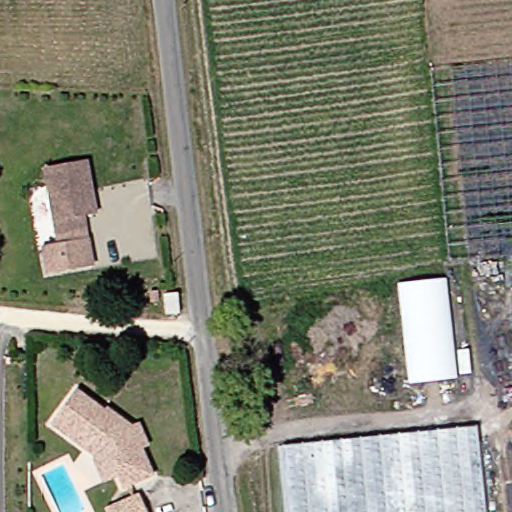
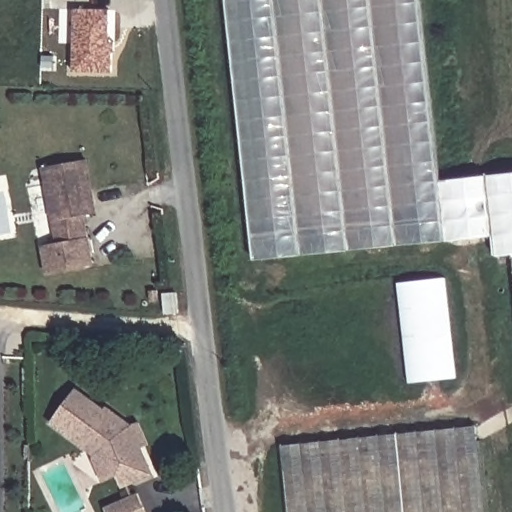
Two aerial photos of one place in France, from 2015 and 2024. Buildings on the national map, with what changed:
new [(438,175),(512,169),(512,256),(506,257),(495,258),(492,243),(250,263),(221,0),(420,0),(438,175)]
new [(109,41),(118,41),(117,54),(113,54),(113,72),(74,72),(74,9),(111,9),(109,41)]
unchanged [(60,237),(58,225),(48,172),(90,165),(100,217),(86,220),(89,232),(60,237)]
unchanged [(86,239),(91,263),(46,271),(41,247),(86,239)]
unchanged [(512,256),(512,320),(506,257),(512,256)]
unchanged [(448,280),(458,380),(409,385),(399,285),(448,280)]
demolished [(172,287),(172,288),(156,290),(156,289),(172,287)]
unchanged [(174,294),(175,314),(162,314),(161,295),(174,294)]
unchanged [(96,454),(57,426),(81,392),(110,413),(113,410),(136,428),(145,425),(152,447),(145,450),(156,479),(126,491),(123,479),(107,484),(96,454)]
unchanged [(477,426),(485,512),(289,512),(282,445),(477,426)]
unchanged [(104,512),(103,508),(134,496),(140,512),(104,512)]

